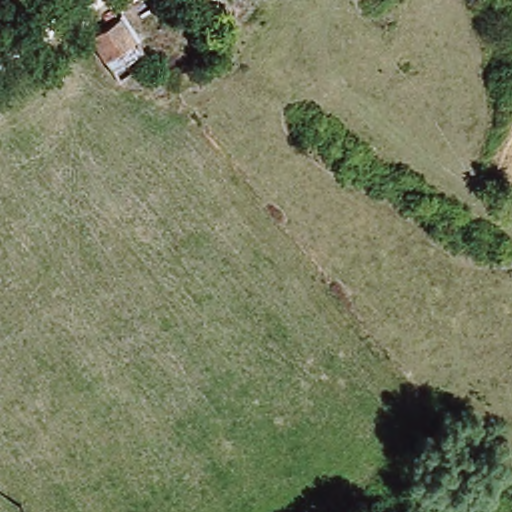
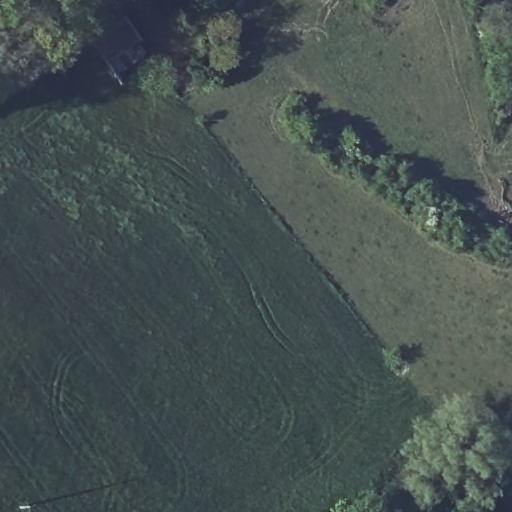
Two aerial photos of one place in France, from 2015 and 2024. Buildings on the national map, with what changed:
unchanged [(140,56),(118,72),(80,23),(105,6),(140,56)]

